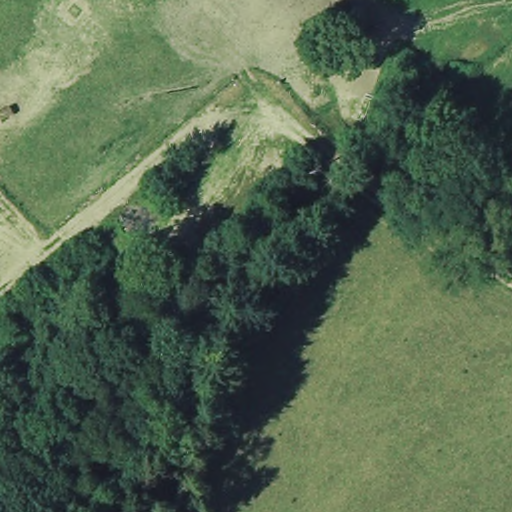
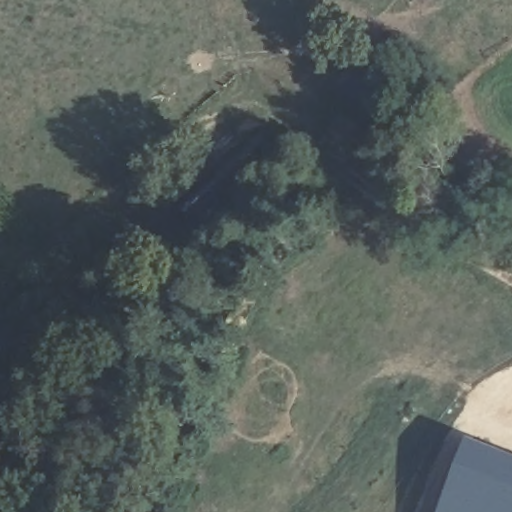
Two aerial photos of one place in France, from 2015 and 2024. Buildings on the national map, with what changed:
unchanged [(354,117),(335,101),(349,82),(349,83),(364,92),(369,95),(354,117)]
new [(469,437),(512,455),(512,512),(439,512),(446,494),(469,437)]

